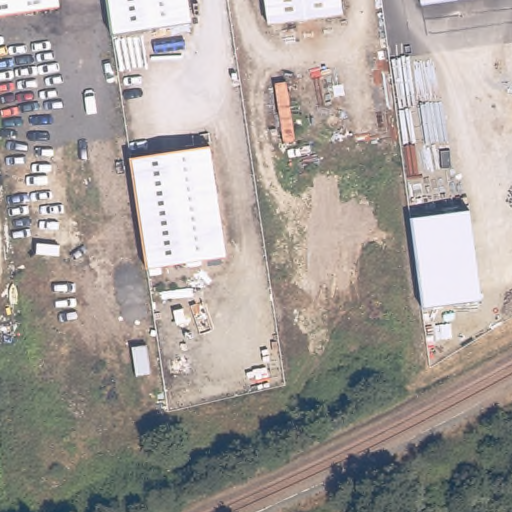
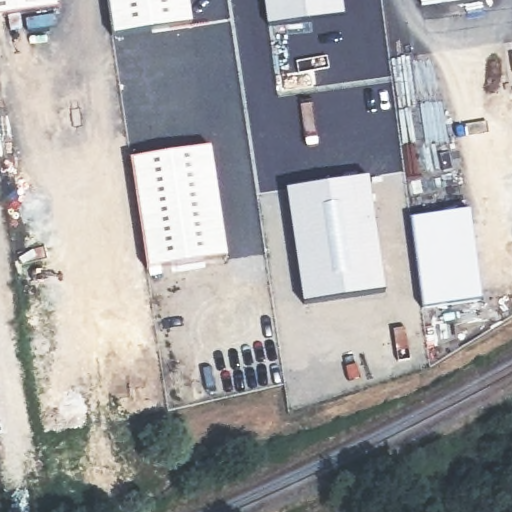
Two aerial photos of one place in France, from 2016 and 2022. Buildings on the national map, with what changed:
unchanged [(0,0),(55,0),(56,7),(0,15),(0,0)]
unchanged [(111,35),(106,0),(187,0),(191,23),(111,35)]
unchanged [(339,0),(341,15),(267,26),(264,0),(339,0)]
unchanged [(213,147),(229,257),(150,269),(134,159),(213,147)]
new [(288,189),(371,179),(387,293),(305,303),(288,189)]
unchanged [(472,211),(483,301),(423,309),(412,218),(472,211)]

